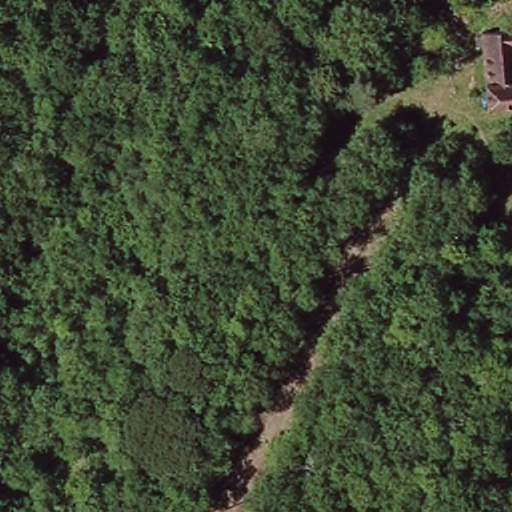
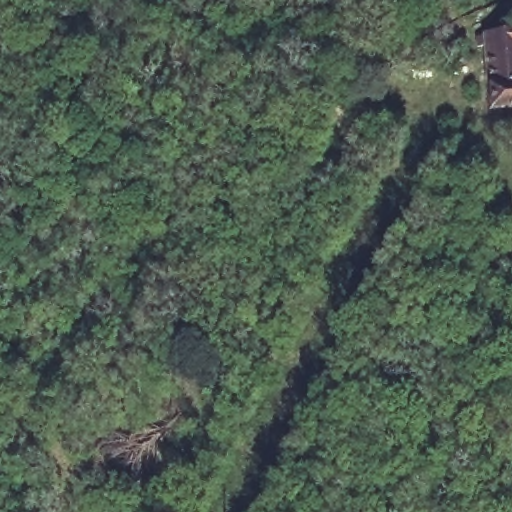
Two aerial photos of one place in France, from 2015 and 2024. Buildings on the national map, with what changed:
unchanged [(495,106),(490,33),(512,32),(512,105),(495,106)]

